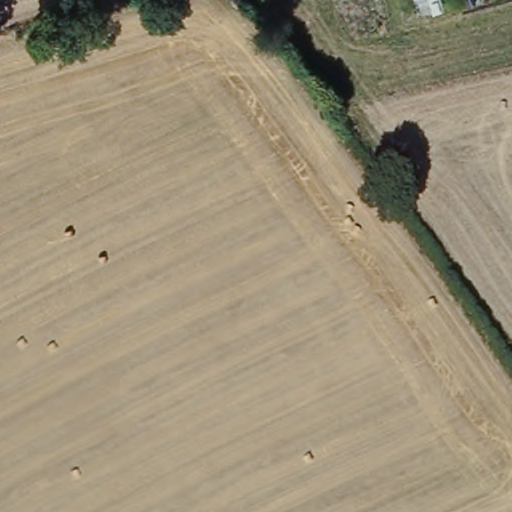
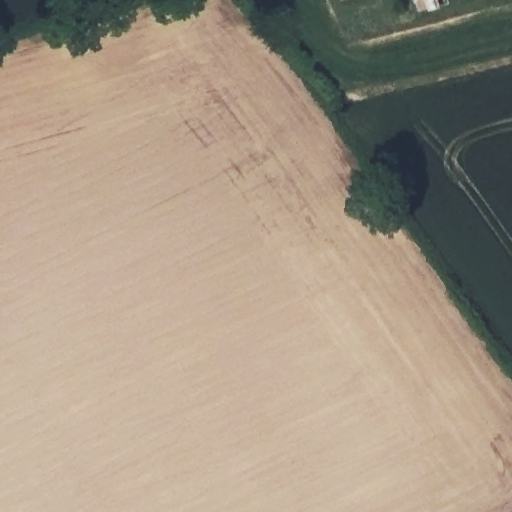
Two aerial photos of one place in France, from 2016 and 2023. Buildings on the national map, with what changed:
[]

